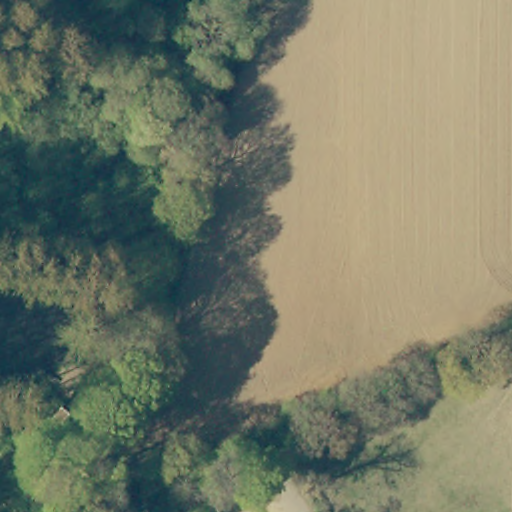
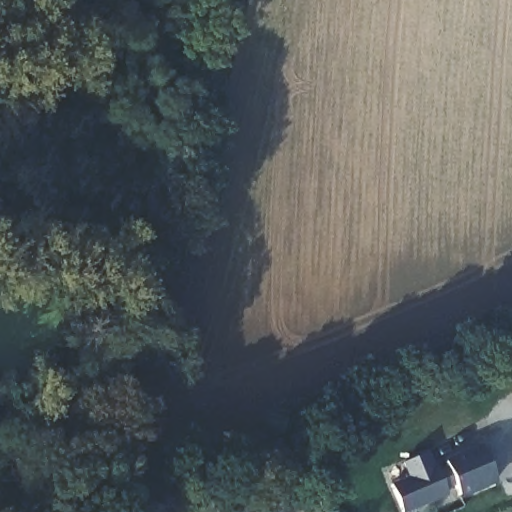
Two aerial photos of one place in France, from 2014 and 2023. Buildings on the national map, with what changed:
new [(402,463),(431,451),(438,466),(446,463),(444,459),(482,441),(498,481),(461,498),(458,491),(409,512),(402,512),(391,482),(406,475),(402,463)]

